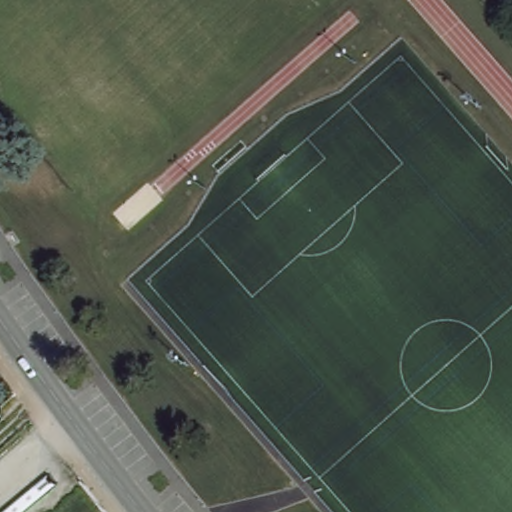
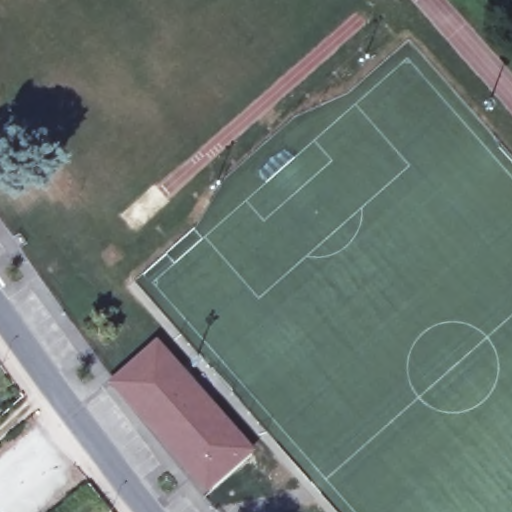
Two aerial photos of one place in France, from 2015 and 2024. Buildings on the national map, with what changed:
new [(156,335),(256,450),(204,497),(105,381),(156,335)]

